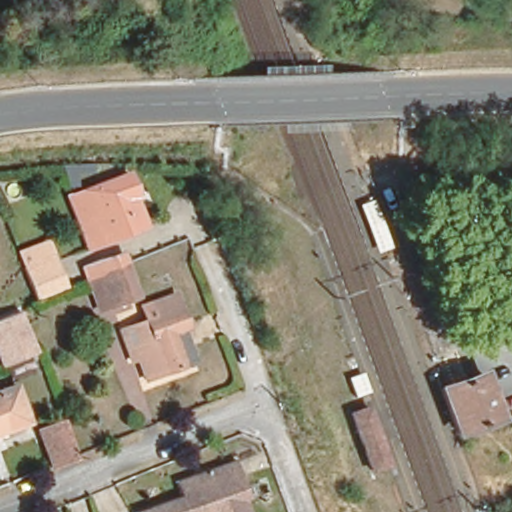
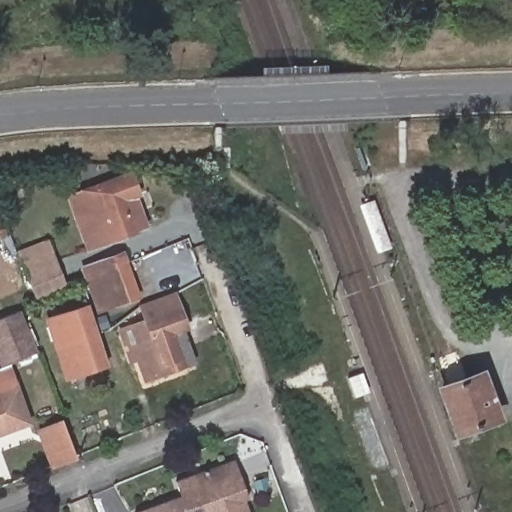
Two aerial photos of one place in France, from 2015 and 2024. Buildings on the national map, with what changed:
unchanged [(133,228),(90,243),(71,193),(125,172),(132,192),(143,224),(133,228)]
unchanged [(48,237),(67,291),(32,300),(16,247),(48,237)]
unchanged [(112,306),(105,285),(100,272),(97,264),(129,251),(131,259),(136,272),(144,293),(112,306)]
unchanged [(140,355),(136,356),(125,327),(136,323),(150,318),(145,303),(154,300),(178,290),(192,330),(180,335),(190,361),(184,363),(155,374),(148,376),(140,355)]
new [(89,306),(97,333),(108,364),(67,377),(49,319),(89,306)]
unchanged [(39,365),(2,377),(0,371),(0,316),(19,310),(39,365)]
unchanged [(483,364),(500,417),(451,435),(431,382),(483,364)]
unchanged [(26,420),(0,431),(0,390),(15,384),(26,420)]
unchanged [(365,401),(388,459),(368,469),(345,410),(365,401)]
unchanged [(77,453),(54,462),(41,429),(65,418),(77,453)]
unchanged [(180,493),(236,473),(250,512),(174,512),(185,508),(180,493)]

